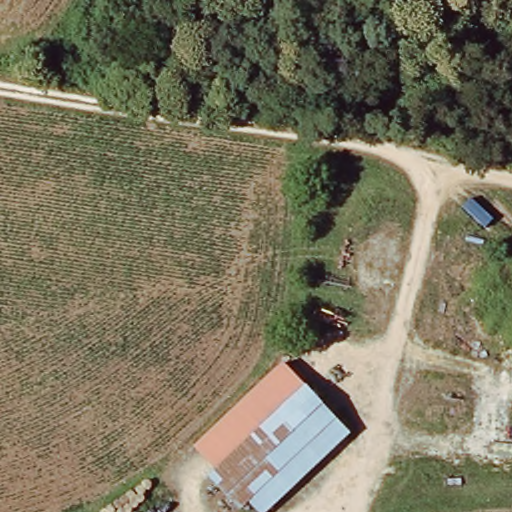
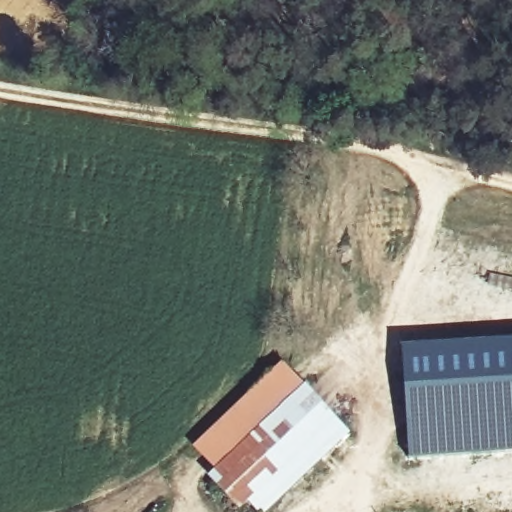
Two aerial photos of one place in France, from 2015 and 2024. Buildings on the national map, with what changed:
new [(512,340),(512,454),(409,460),(402,347),(512,340)]
unchanged [(222,474),(199,448),(290,370),(312,394),(222,474)]
unchanged [(241,508),(215,480),(222,474),(312,394),(338,423),(249,502),(241,508)]
unchanged [(354,440),(272,512),(257,512),(249,502),(338,423),(354,440)]

